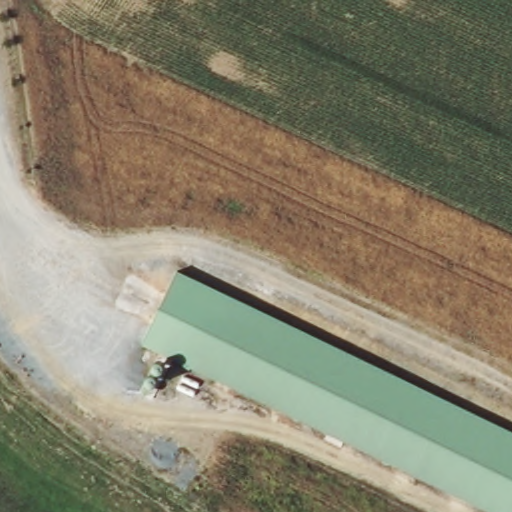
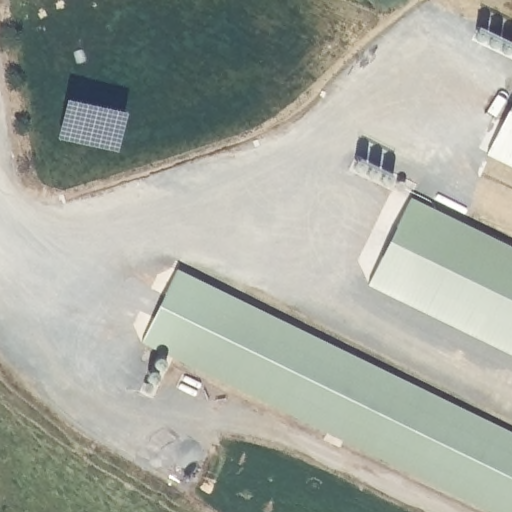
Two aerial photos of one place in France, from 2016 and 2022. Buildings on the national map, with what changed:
new [(512,356),(367,286),(410,199),(512,248),(512,356)]
unchanged [(176,270),(512,432),(512,512),(489,512),(141,341),(176,270)]

